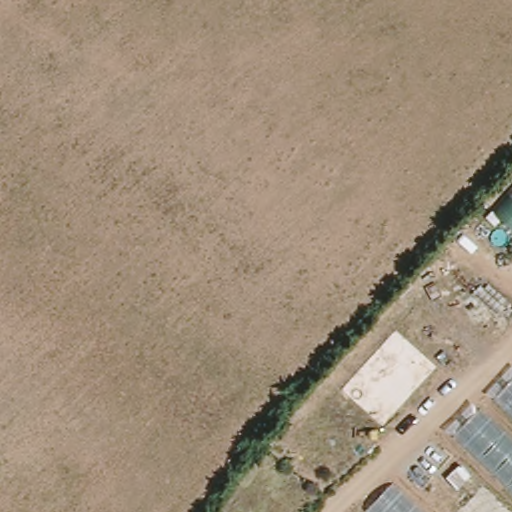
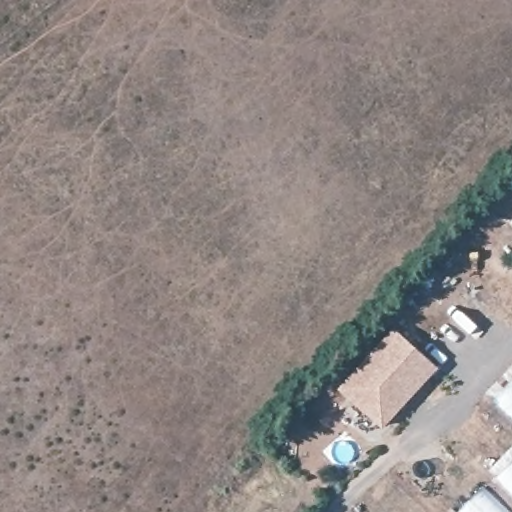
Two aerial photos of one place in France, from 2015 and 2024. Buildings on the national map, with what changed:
unchanged [(512,194),(512,234),(492,215),(512,194)]
new [(338,386),(393,326),(436,365),(380,426),(338,386)]
unchanged [(512,498),(451,438),(512,381),(512,498)]
unchanged [(422,512),(371,512),(369,510),(393,484),(422,512)]

